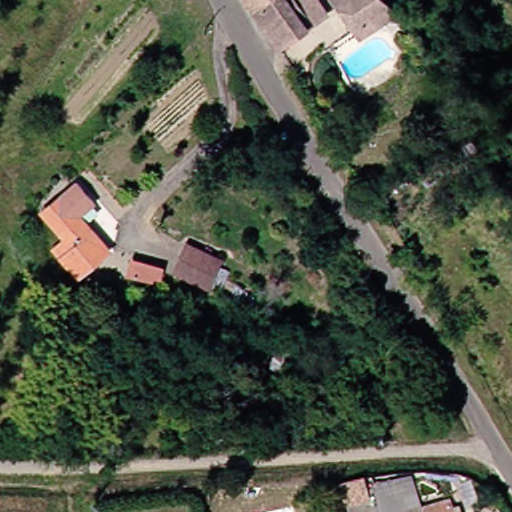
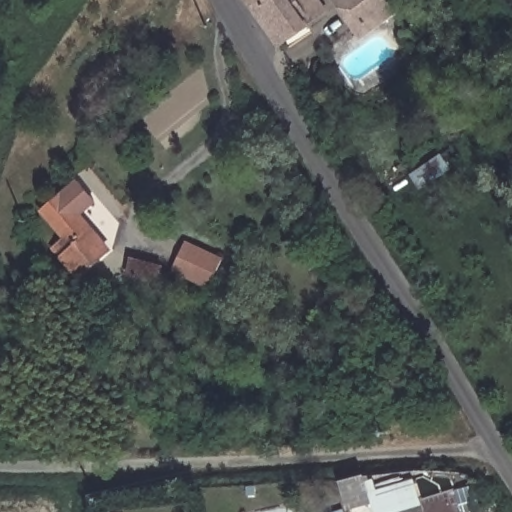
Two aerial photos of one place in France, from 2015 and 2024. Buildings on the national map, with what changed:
unchanged [(323,0),(330,11),(283,43),(255,0),(323,0)]
unchanged [(395,0),(401,5),(373,23),(363,31),(357,22),(342,0),(395,0)]
unchanged [(110,249),(81,277),(54,248),(65,237),(40,211),(66,186),(76,177),(96,198),(86,208),(79,215),(110,249)]
unchanged [(221,256),(209,284),(173,272),(186,241),(221,256)]
unchanged [(160,282),(127,273),(130,257),(166,265),(160,282)]
unchanged [(376,485),(415,477),(422,502),(450,496),(454,512),(383,512),(376,485)]

